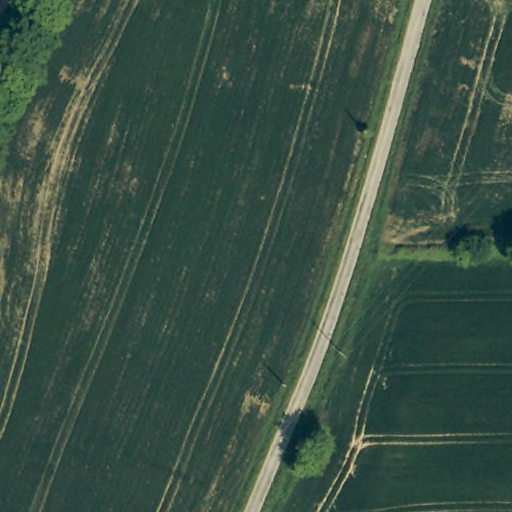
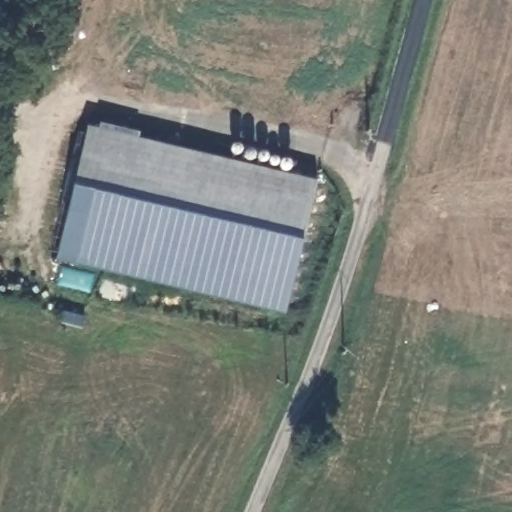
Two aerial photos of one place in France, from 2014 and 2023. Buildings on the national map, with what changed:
new [(50,251),(79,132),(86,135),(87,125),(100,129),(101,122),(141,132),(139,138),(230,160),(230,150),(234,145),(238,145),(251,150),(266,153),(277,157),(279,160),(277,171),(317,181),(286,315),(56,261),(59,254),(50,251)]

